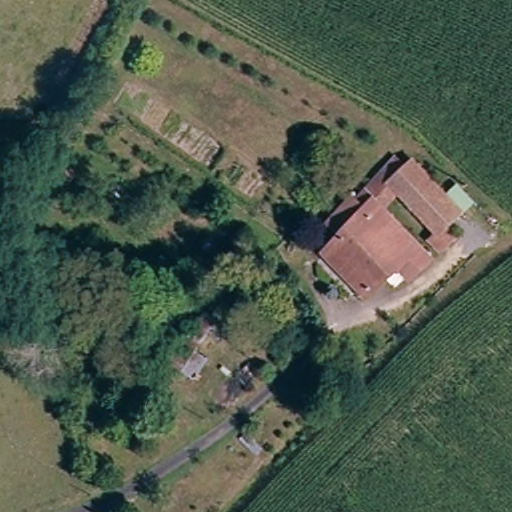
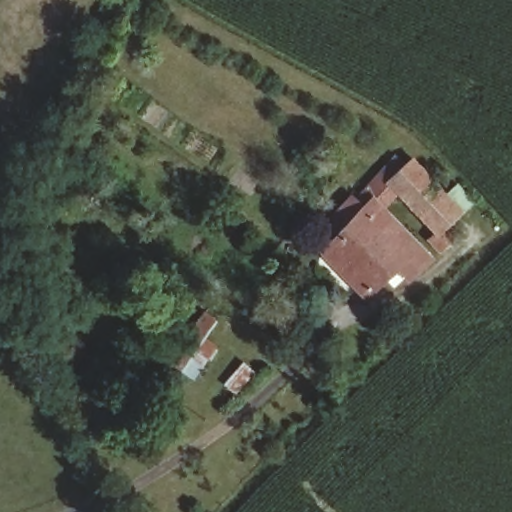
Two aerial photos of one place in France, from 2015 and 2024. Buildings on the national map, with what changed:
unchanged [(428,240),(436,229),(385,184),(407,160),(455,209),(444,220),(456,230),(440,249),(428,240)]
unchanged [(411,277),(398,267),(370,298),(324,255),(340,237),(330,229),(337,220),(365,187),(364,186),(371,180),(376,176),(383,182),(378,189),(372,199),(434,256),(411,277)]

